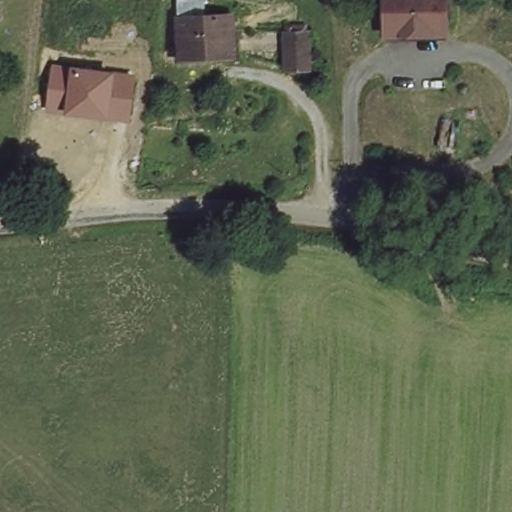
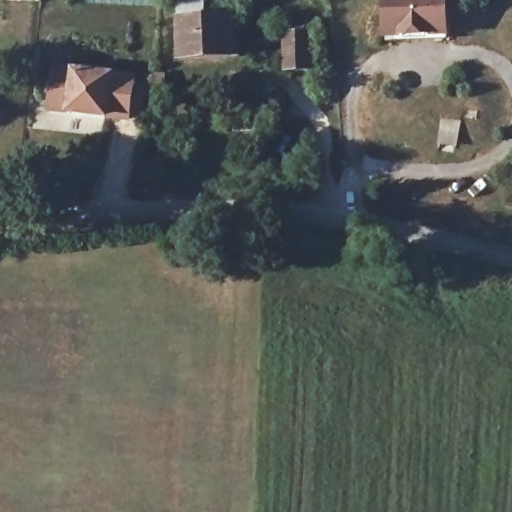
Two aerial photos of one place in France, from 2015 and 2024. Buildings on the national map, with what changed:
unchanged [(188,55),(185,19),(182,0),(189,0),(204,0),(206,17),(237,13),(242,51),(188,55)]
unchanged [(385,31),(384,0),(446,0),(447,28),(385,31)]
unchanged [(287,67),(288,28),(310,29),(308,68),(287,67)]
unchanged [(70,67),(112,73),(134,75),(128,122),(106,118),(68,114),(44,111),(52,64),(70,67)]

